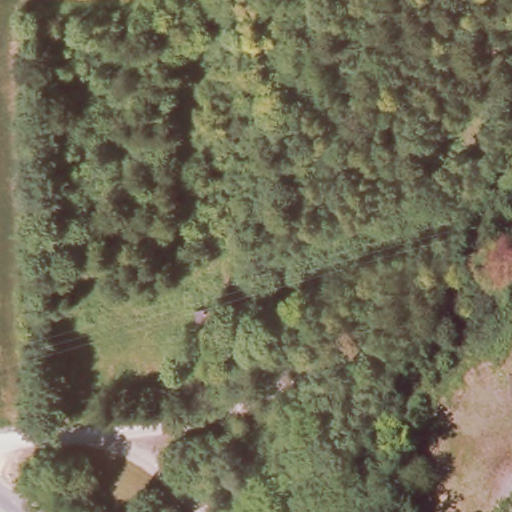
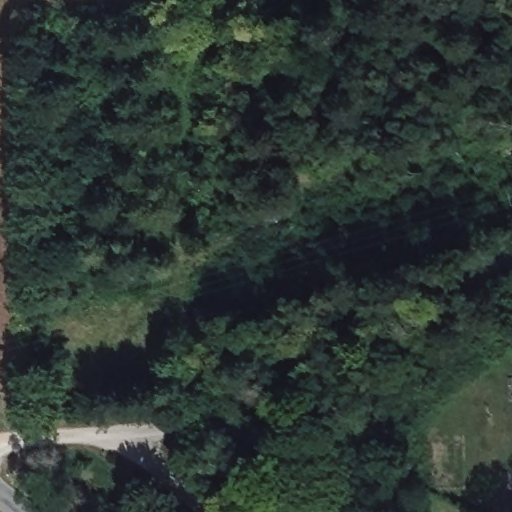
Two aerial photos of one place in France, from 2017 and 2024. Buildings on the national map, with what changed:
unchanged [(219,317),(213,318),(215,351),(198,352),(196,310),(219,309),(219,317)]

